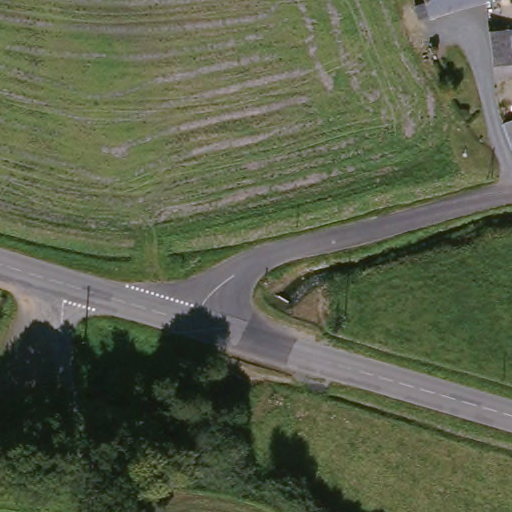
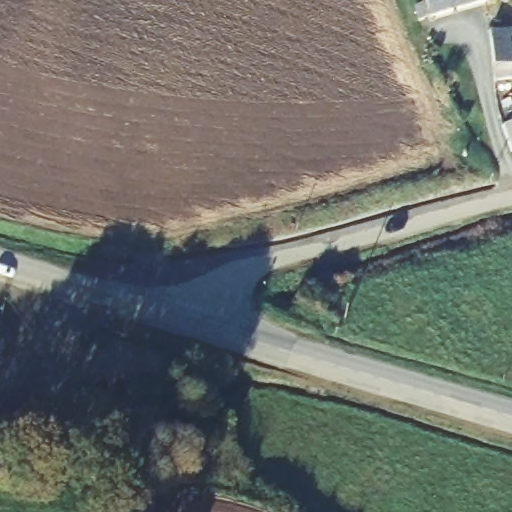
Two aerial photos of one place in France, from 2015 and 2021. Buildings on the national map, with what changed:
unchanged [(419,7),(433,2),(432,0),(487,0),(488,1),(422,22),(419,7)]
unchanged [(487,0),(491,0),(488,1),(487,0)]
unchanged [(492,29),(512,28),(512,34),(512,75),(497,76),(492,34),(492,29)]
unchanged [(512,121),(512,143),(506,122),(512,121)]

